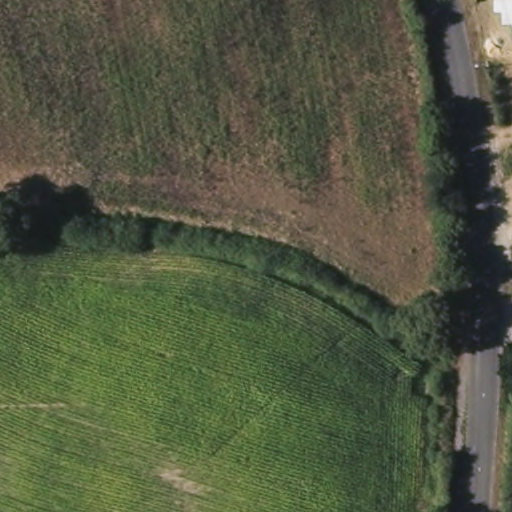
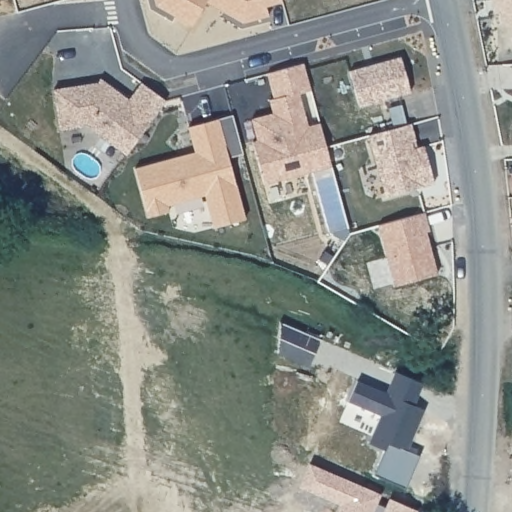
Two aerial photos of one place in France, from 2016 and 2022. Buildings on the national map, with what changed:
new [(194,25),(157,4),(156,0),(208,0),(207,1),(194,25)]
new [(207,1),(208,0),(281,0),(282,1),(266,5),(269,15),(243,22),(207,1)]
new [(490,0),(512,0),(512,43),(511,43),(510,25),(499,26),(498,13),(491,14),(491,1),(490,0)]
new [(350,70),(401,57),(410,92),(360,104),(350,70)]
new [(253,140),(257,139),(252,118),(272,112),(269,99),(273,98),(268,72),(303,63),(310,90),(301,93),(308,126),(320,123),(332,165),(265,183),(253,140)]
new [(86,124),(59,129),(54,89),(98,83),(101,79),(129,99),(142,83),(166,99),(127,153),(86,124)]
new [(215,227),(206,194),(167,204),(169,211),(147,217),(135,168),(195,151),(189,126),(219,119),(246,219),(215,227)]
new [(415,136),(417,144),(423,142),(433,179),(385,193),(368,131),(410,120),(415,136)]
new [(378,225),(423,213),(429,229),(426,230),(437,273),(395,284),(378,225)]

